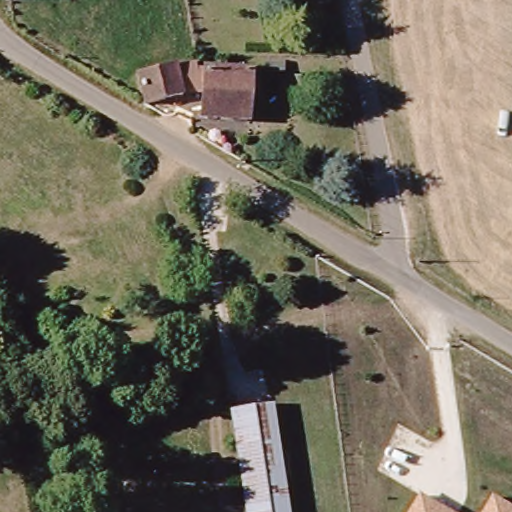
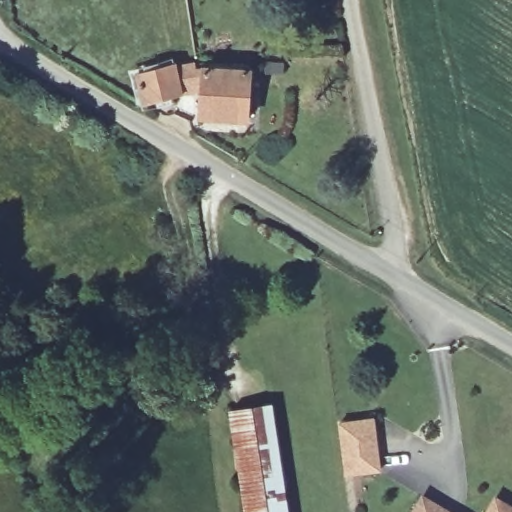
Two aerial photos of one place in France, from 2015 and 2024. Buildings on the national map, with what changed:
unchanged [(175,94),(139,101),(133,71),(181,63),(192,63),(245,69),(240,119),(194,114),(196,84),(175,88),(175,94)]
unchanged [(272,394),(284,512),(239,512),(227,399),(272,394)]
new [(375,419),(381,471),(346,476),(338,424),(375,419)]
unchanged [(422,495),(452,512),(412,512),(422,495)]
unchanged [(512,507),(512,512),(485,512),(495,497),(512,507)]

